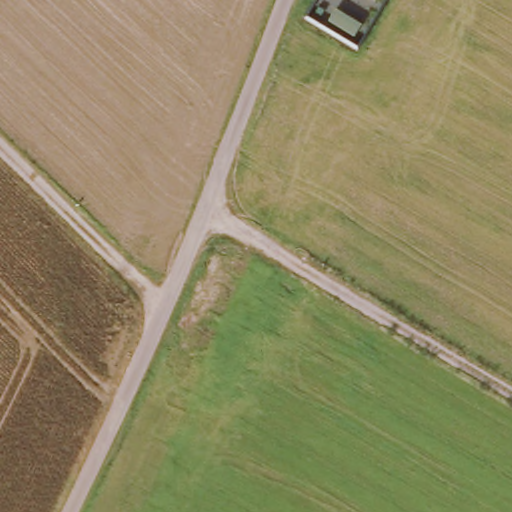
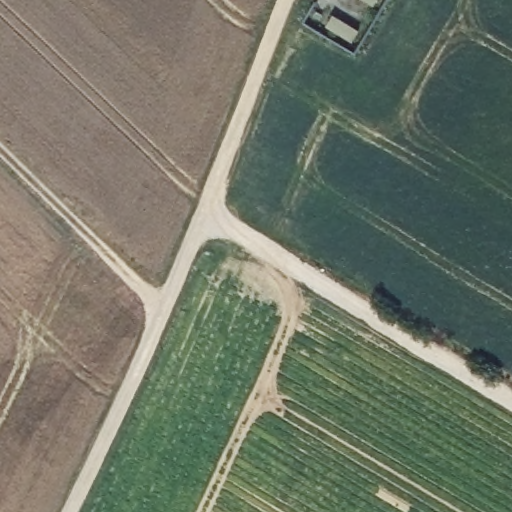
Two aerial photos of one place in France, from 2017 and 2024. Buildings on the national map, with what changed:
unchanged [(377,0),(385,0),(383,4),(377,0)]
unchanged [(341,14),(368,29),(361,41),(334,26),(341,14)]

